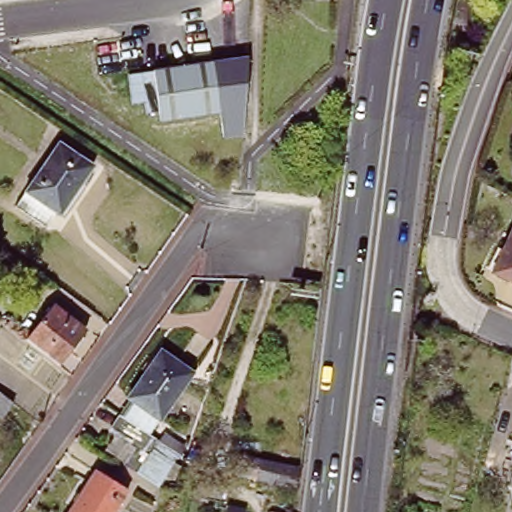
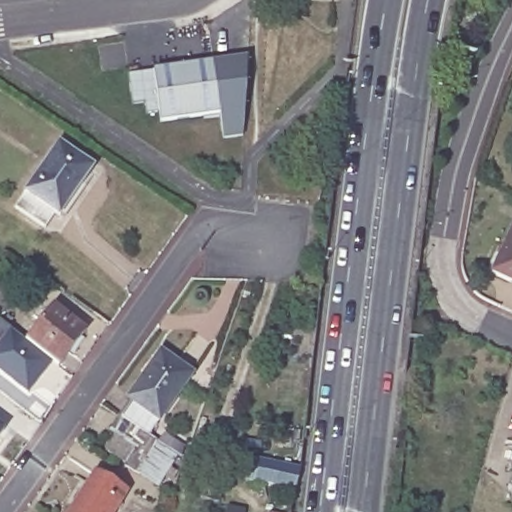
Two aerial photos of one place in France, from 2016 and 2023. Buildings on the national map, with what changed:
unchanged [(221,115),(162,125),(160,116),(147,118),(146,107),(133,109),(129,79),(153,75),(153,74),(213,64),(221,115)]
unchanged [(55,142),(89,167),(55,214),(21,189),(55,142)]
unchanged [(491,272),(512,229),(512,283),(491,272)]
unchanged [(55,305),(88,329),(59,366),(27,341),(55,305)]
new [(28,393),(0,371),(0,319),(27,341),(52,361),(28,393)]
unchanged [(163,346),(199,375),(150,431),(145,437),(114,414),(163,346)]
demolished [(13,403),(2,418),(0,416),(0,393),(13,403)]
unchanged [(145,437),(150,431),(161,440),(164,435),(188,451),(161,489),(98,442),(114,414),(145,437)]
unchanged [(301,469),(296,492),(236,477),(240,455),(301,469)]
unchanged [(512,455),(512,491),(505,490),(512,455)]
unchanged [(96,472),(128,493),(116,512),(69,512),(96,472)]
unchanged [(512,505),(512,508),(511,507),(512,505)]

